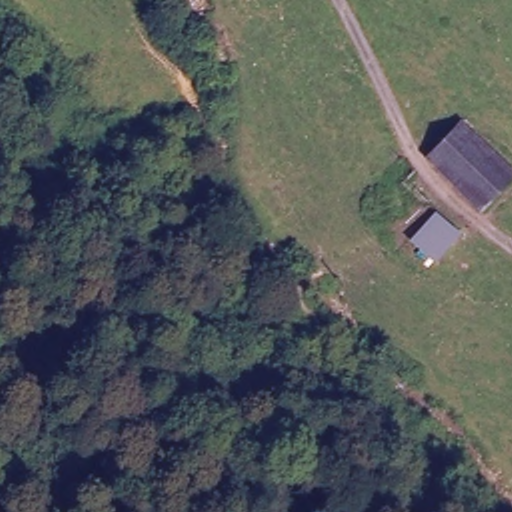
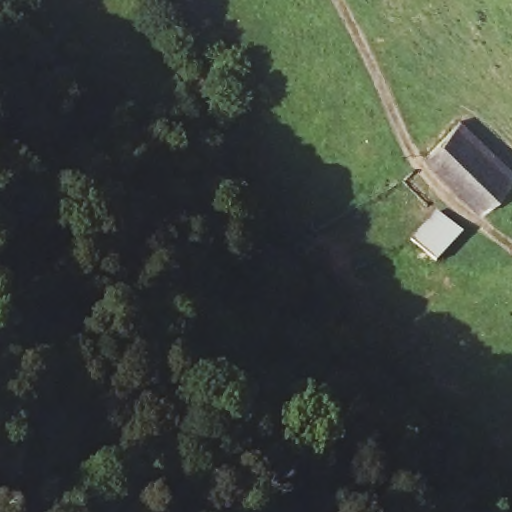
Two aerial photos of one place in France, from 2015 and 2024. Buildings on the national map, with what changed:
unchanged [(512,168),(512,181),(483,209),(430,156),(463,121),(512,168)]
unchanged [(435,209),(457,229),(431,258),(425,253),(408,237),(435,209)]

